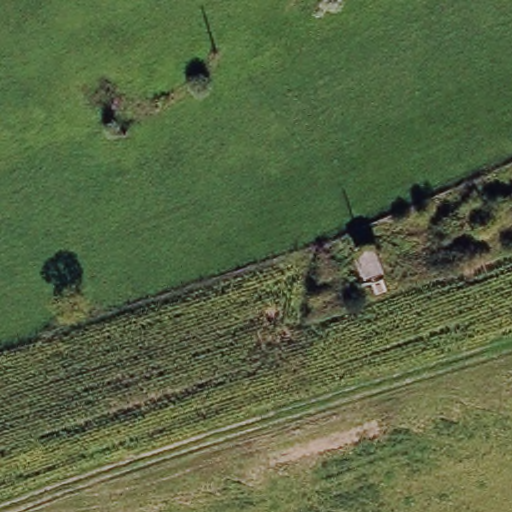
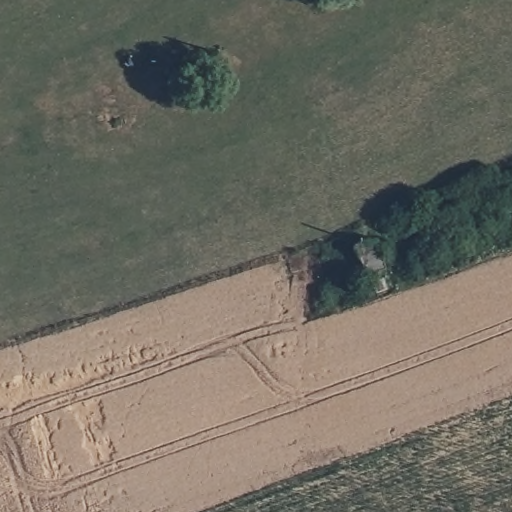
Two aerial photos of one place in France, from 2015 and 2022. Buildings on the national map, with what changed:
unchanged [(375,267),(359,273),(351,246),(367,241),(375,267)]
unchanged [(376,278),(380,290),(369,295),(365,281),(376,278)]

